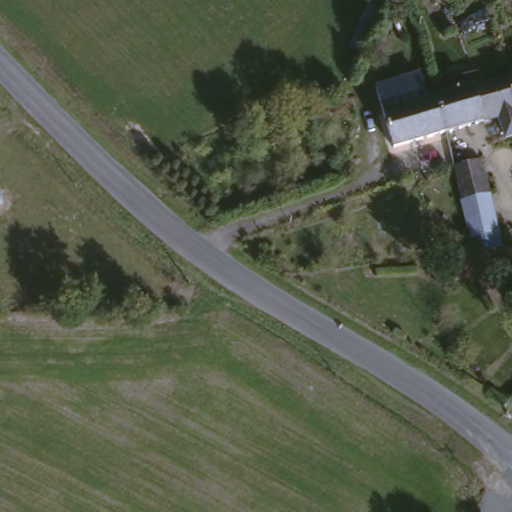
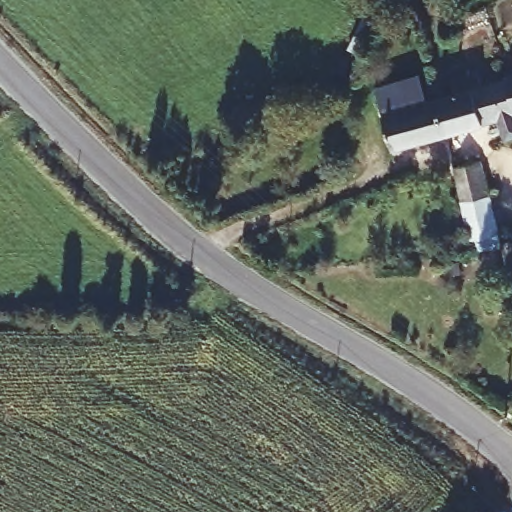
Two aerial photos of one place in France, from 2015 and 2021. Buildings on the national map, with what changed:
unchanged [(506,82),(504,76),(503,71),(512,69),(512,105),(506,82)]
unchanged [(449,91),(445,77),(472,71),(475,82),(504,76),(506,82),(512,105),(512,136),(501,138),(496,119),(441,134),(431,95),(449,91)]
unchanged [(377,107),(371,85),(414,75),(420,98),(377,107)]
unchanged [(387,148),(377,107),(420,98),(431,95),(441,134),(387,148)]
unchanged [(476,160),(498,244),(480,250),(476,237),(467,237),(449,169),(449,167),(476,160)]

